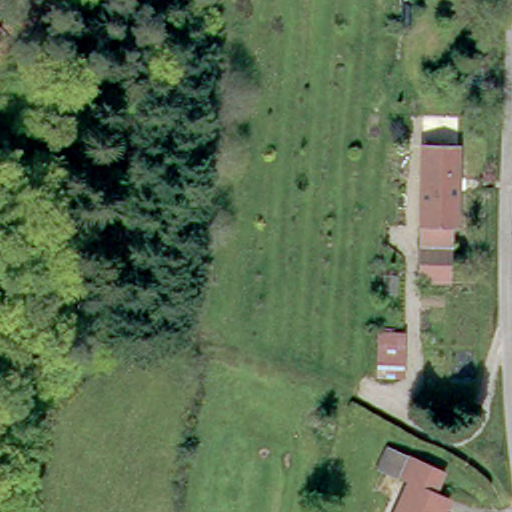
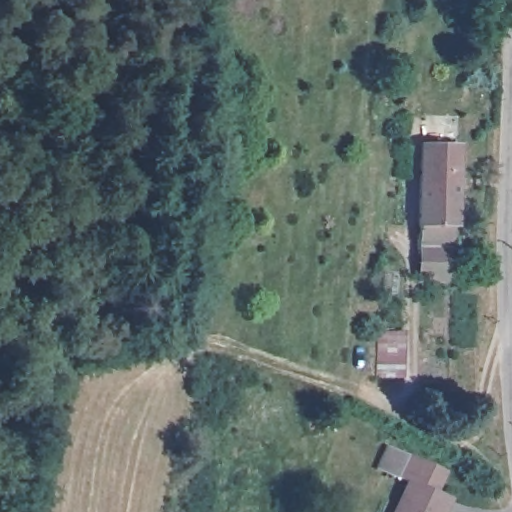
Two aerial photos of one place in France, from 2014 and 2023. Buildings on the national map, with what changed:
unchanged [(416,275),(417,244),(414,244),(417,142),(453,144),(450,217),(446,216),(445,245),(443,275),(416,275)]
unchanged [(380,387),(380,376),(377,376),(378,332),(403,332),(402,377),(397,376),(397,387),(380,387)]
unchanged [(376,462),(384,442),(401,450),(393,470),(376,462)]
unchanged [(436,512),(389,512),(406,475),(396,470),(404,452),(439,468),(431,486),(446,492),(436,512)]

